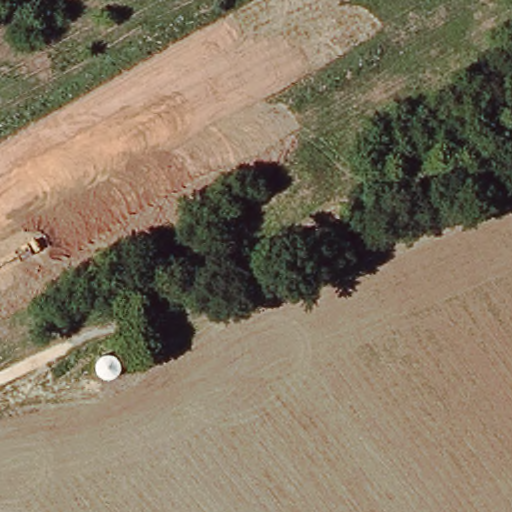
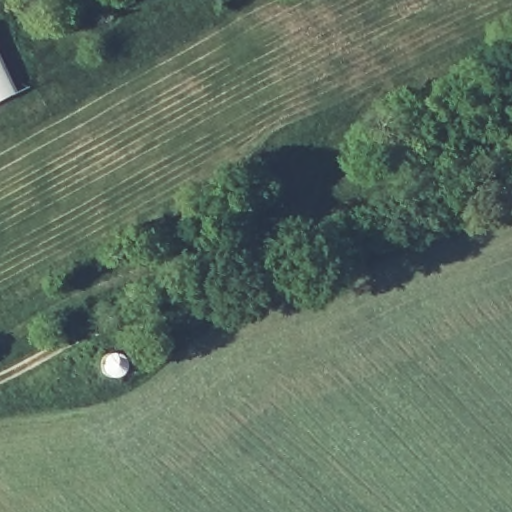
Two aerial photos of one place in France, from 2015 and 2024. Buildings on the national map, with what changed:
new [(0,100),(0,57),(17,92),(0,100)]
unchanged [(106,353),(109,353),(114,353),(117,354),(120,357),(123,361),(123,366),(122,370),(120,373),(118,375),(114,377),(110,377),(106,376),(102,374),(100,371),(99,368),(99,364),(100,359),(102,357),(104,354),(106,353)]

